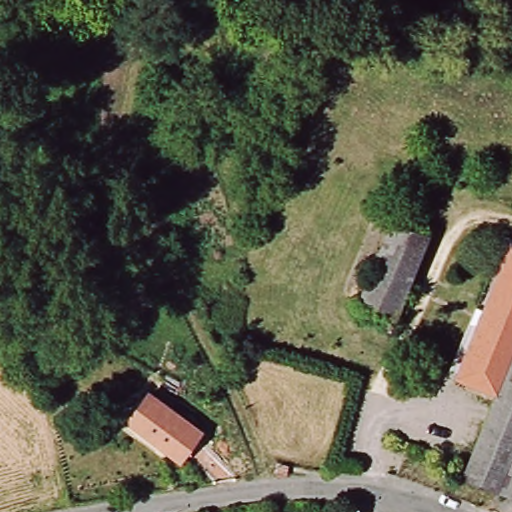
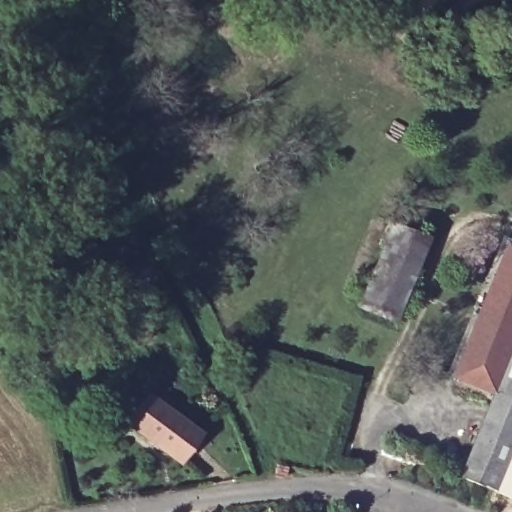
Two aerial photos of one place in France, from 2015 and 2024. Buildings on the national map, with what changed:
unchanged [(393,225),(431,241),(396,325),(358,310),(393,225)]
unchanged [(472,487),(466,483),(498,402),(458,386),(512,255),(512,503),(472,487)]
unchanged [(179,465),(131,428),(152,400),(201,437),(179,465)]
unchanged [(276,465),(282,467),(279,475),(273,473),(276,465)]

